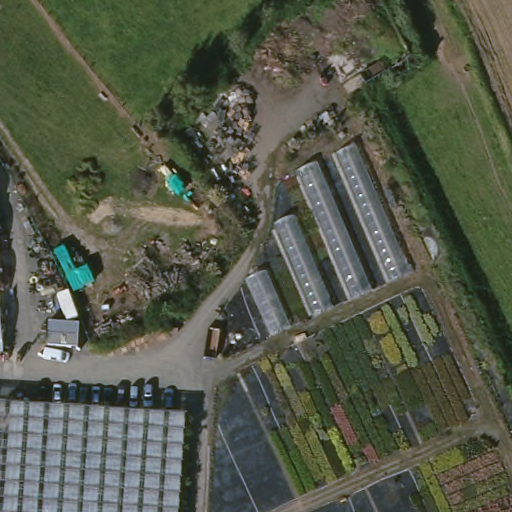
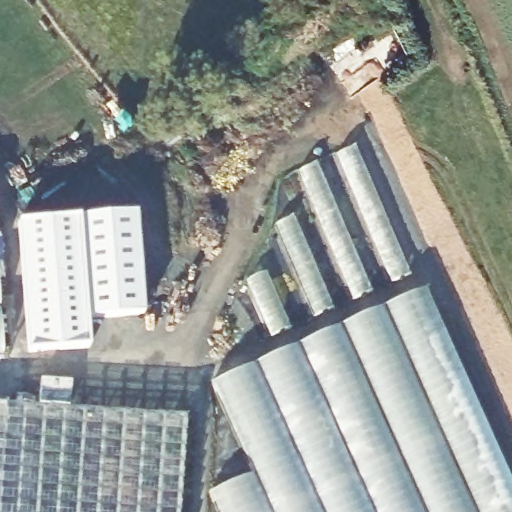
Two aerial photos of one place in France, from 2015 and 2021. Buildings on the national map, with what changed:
new [(338,154),(356,146),(410,274),(392,282),(338,154)]
new [(299,171),(316,164),(371,290),(353,299),(299,171)]
new [(276,225),(293,216),(333,308),(314,316),(276,225)]
new [(209,491),(253,473),(212,382),(426,288),(512,480),(512,512),(218,512),(209,491)]
new [(49,323),(79,325),(77,350),(48,348),(49,323)]
unchanged [(0,352),(0,329),(2,351),(0,352)]
unchanged [(178,512),(0,512),(8,425),(8,403),(185,418),(178,512)]
unchanged [(0,512),(0,423),(8,425),(0,512)]

